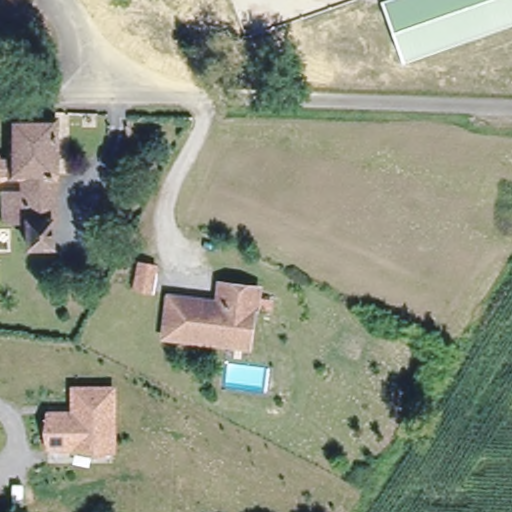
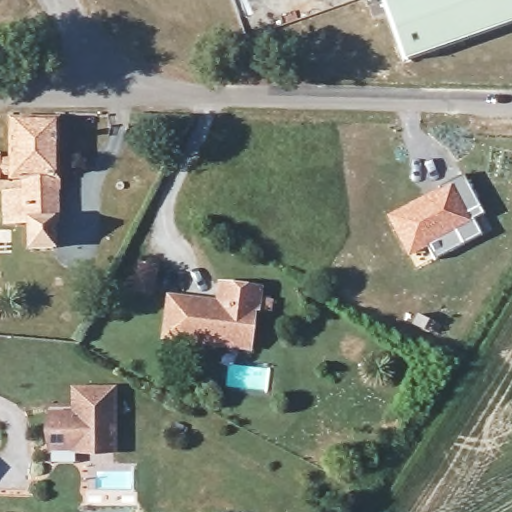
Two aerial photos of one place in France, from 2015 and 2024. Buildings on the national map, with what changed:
unchanged [(383,1),(388,0),(512,0),(512,25),(500,29),(404,61),(383,1)]
unchanged [(60,215),(55,214),(35,212),(36,190),(36,179),(10,177),(10,171),(10,161),(14,110),(61,110),(60,215)]
unchanged [(10,171),(0,171),(0,161),(10,161),(10,171)]
new [(433,260),(427,247),(406,258),(385,215),(462,175),(483,214),(473,220),(481,235),(433,260)]
unchanged [(53,250),(30,248),(31,221),(12,220),(15,189),(36,190),(35,212),(55,214),(53,250)]
unchanged [(151,293),(135,290),(140,262),(157,266),(151,293)]
unchanged [(234,348),(234,346),(217,345),(216,343),(202,343),(202,345),(177,342),(177,340),(165,340),(170,300),(205,303),(216,304),(216,306),(220,306),(222,288),(262,292),(260,312),(255,312),(252,331),(252,348),(234,348)]
unchanged [(94,450),(70,449),(45,448),(46,413),(71,416),(74,390),(111,390),(111,428),(110,450),(94,450)]

